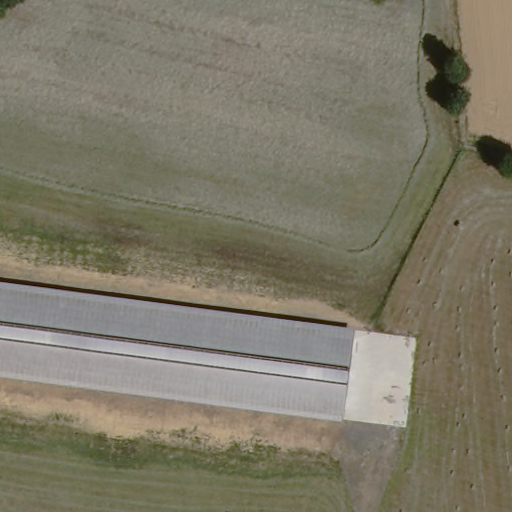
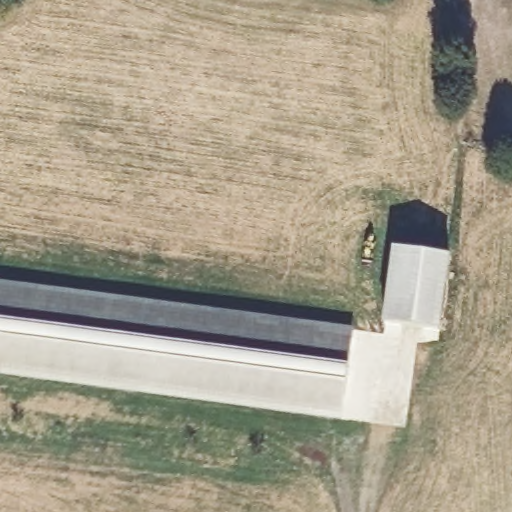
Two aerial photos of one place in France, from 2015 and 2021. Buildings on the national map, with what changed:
new [(450,256),(441,330),(383,322),(392,249),(450,256)]
unchanged [(355,326),(345,417),(0,371),(0,279),(355,326)]

